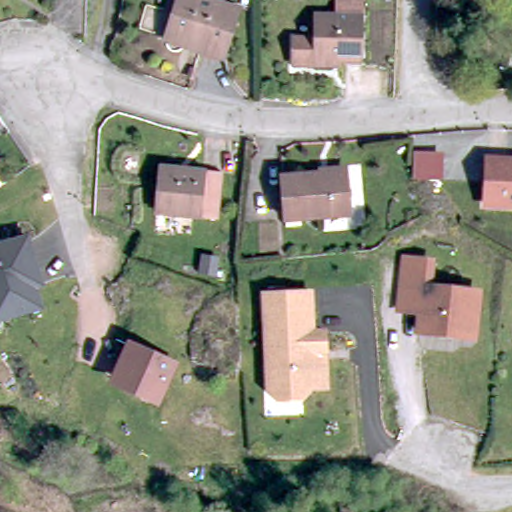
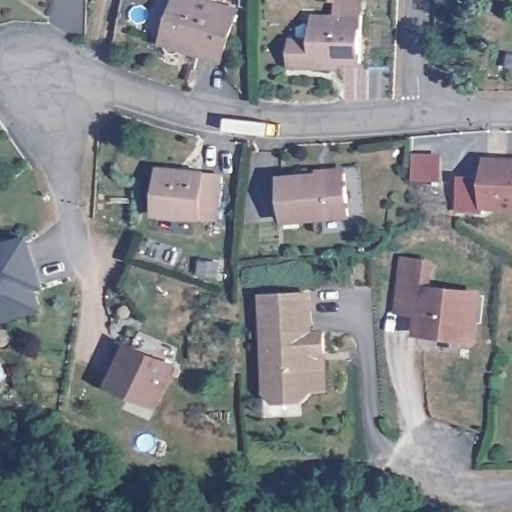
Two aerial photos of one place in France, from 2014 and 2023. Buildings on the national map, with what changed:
unchanged [(180,0),(202,0),(239,14),(219,59),(165,39),(180,0)]
unchanged [(297,40),(319,39),(319,16),(341,16),(341,13),(367,14),(365,58),(338,58),(338,65),(297,64),(297,40)]
unchanged [(486,156),(512,157),(512,203),(484,202),(486,156)]
unchanged [(427,162),(437,162),(436,186),(426,185),(411,184),(412,161),(427,162)]
unchanged [(283,176),(351,174),(349,217),(283,218),(283,176)]
unchanged [(181,183),(181,177),(216,180),(212,226),(151,221),(152,181),(181,183)]
unchanged [(37,290),(44,310),(0,323),(0,243),(28,235),(45,288),(37,290)]
unchanged [(419,329),(422,310),(400,307),(405,257),(428,259),(425,284),(479,290),(474,335),(419,329)]
unchanged [(312,391),(303,401),(280,402),(270,393),(269,374),(274,373),(271,320),(266,320),(265,298),(312,296),(314,335),(325,334),(326,355),(327,390),(312,391)]
unchanged [(114,382),(107,379),(122,347),(170,369),(153,406),(132,397),(112,387),(114,382)]

